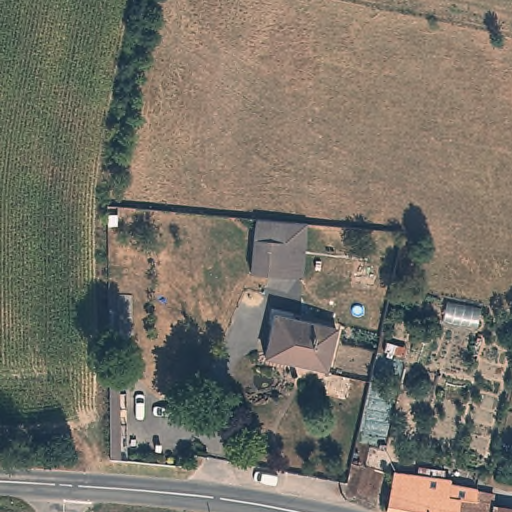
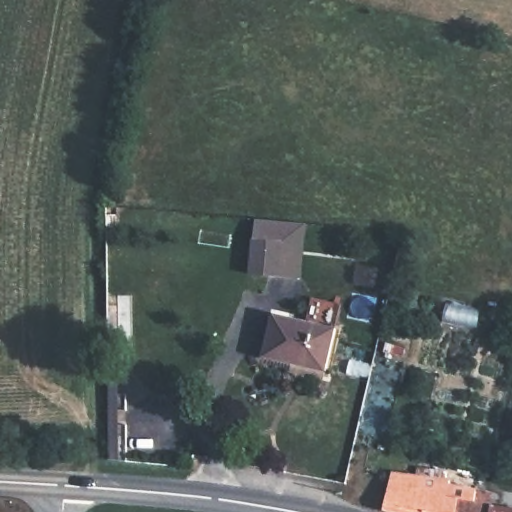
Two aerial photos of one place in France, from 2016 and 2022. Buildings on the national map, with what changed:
unchanged [(303,220),(299,274),(280,272),(282,239),(251,237),(253,215),(303,220)]
unchanged [(282,239),(280,272),(248,269),(251,237),(282,239)]
unchanged [(327,369),(267,354),(275,313),(337,328),(327,369)]
unchanged [(392,469),(495,489),(492,501),(512,504),(512,512),(386,512),(392,469)]

